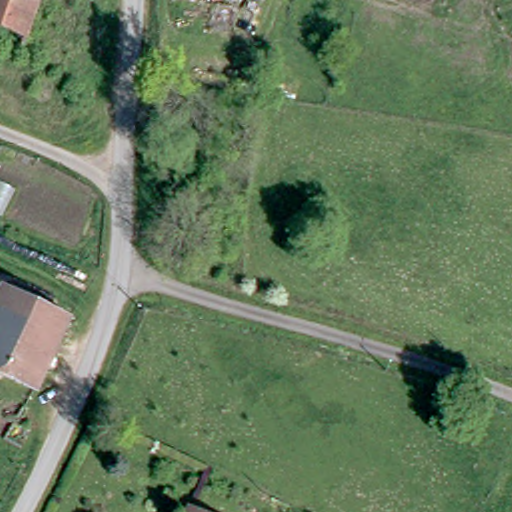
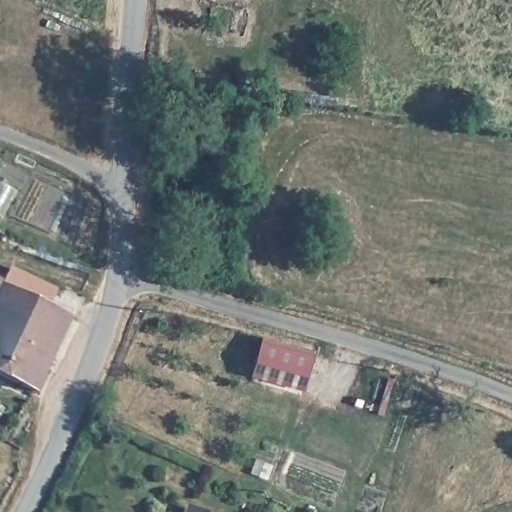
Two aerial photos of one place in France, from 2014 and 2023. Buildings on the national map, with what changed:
demolished [(0,0),(34,0),(38,1),(25,41),(0,32),(0,0)]
unchanged [(0,373),(0,275),(7,278),(3,285),(72,316),(38,391),(0,373)]
new [(248,375),(260,336),(313,351),(304,391),(248,375)]
unchanged [(197,512),(189,512),(190,510),(197,512)]

